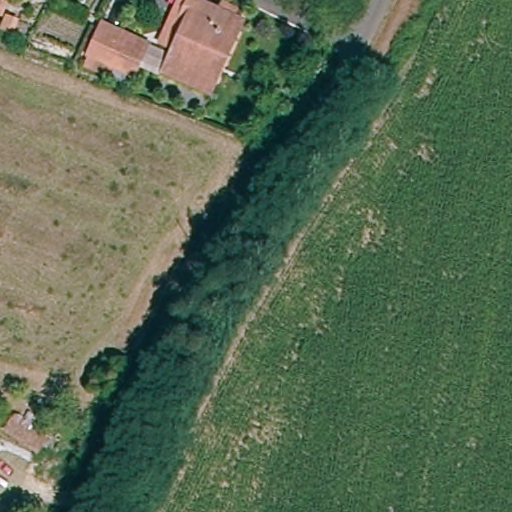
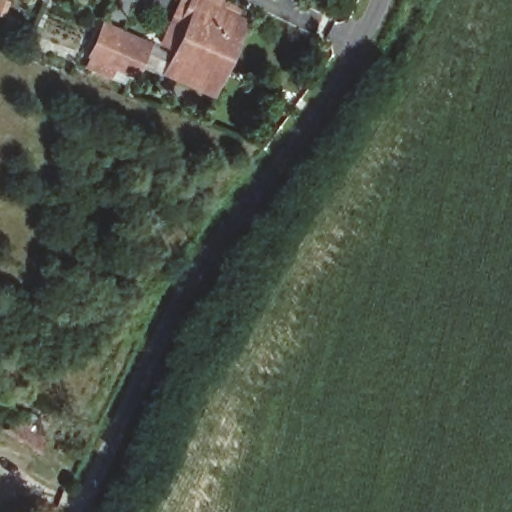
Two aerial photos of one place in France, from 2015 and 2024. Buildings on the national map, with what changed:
unchanged [(1,5),(3,0),(19,0),(15,11),(1,5)]
unchanged [(213,71),(205,89),(163,70),(186,18),(180,15),(187,0),(188,0),(229,18),(236,21),(213,71)]
unchanged [(16,25),(20,14),(31,18),(27,29),(16,25)]
unchanged [(87,52),(97,31),(99,26),(142,46),(139,51),(130,72),(87,52)]
unchanged [(1,426),(10,411),(15,414),(21,406),(29,411),(25,419),(42,431),(33,446),(1,426)]

